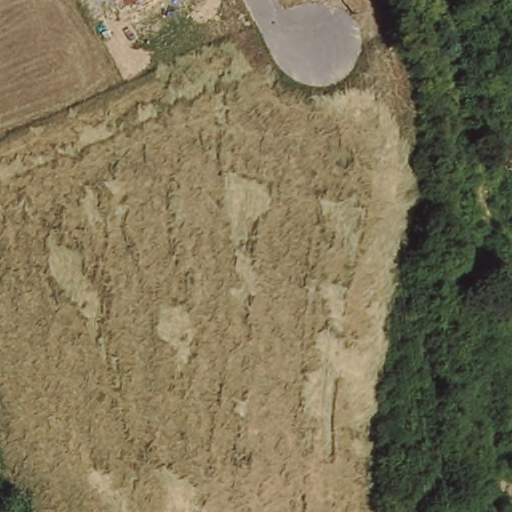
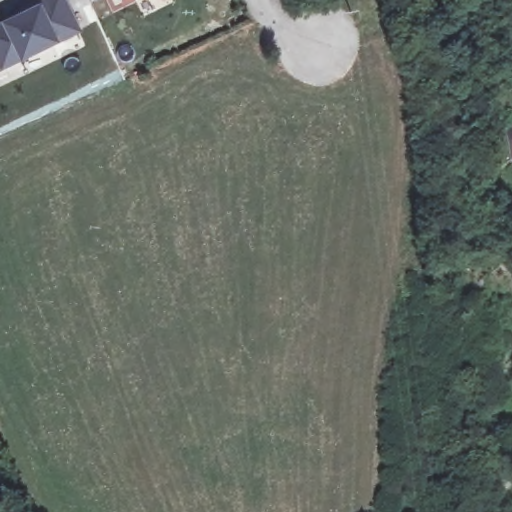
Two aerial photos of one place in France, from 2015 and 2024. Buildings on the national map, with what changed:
new [(48,6),(61,0),(73,0),(90,33),(14,70),(0,42),(0,36),(32,20),(30,15),(48,6)]
unchanged [(118,0),(132,0),(121,5),(118,0)]

